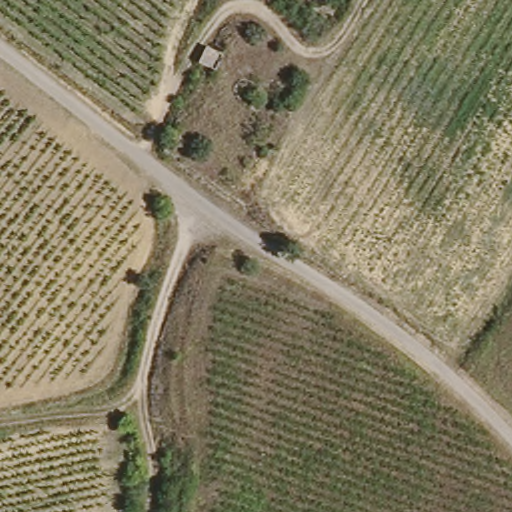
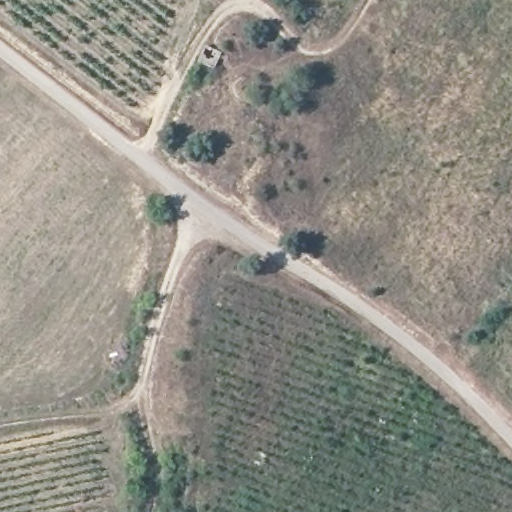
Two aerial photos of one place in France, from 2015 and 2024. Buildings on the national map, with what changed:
unchanged [(220,54),(211,73),(192,61),(202,43),(220,54)]

